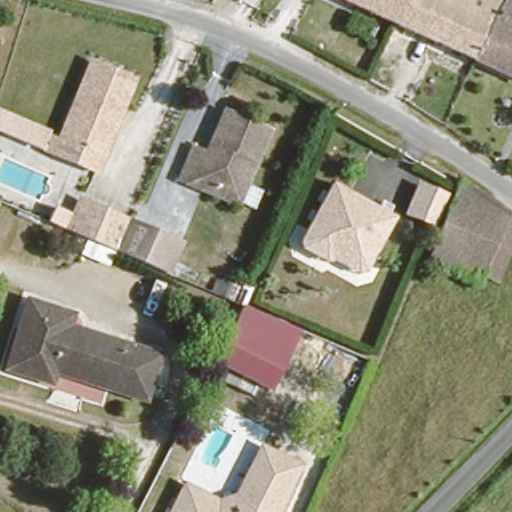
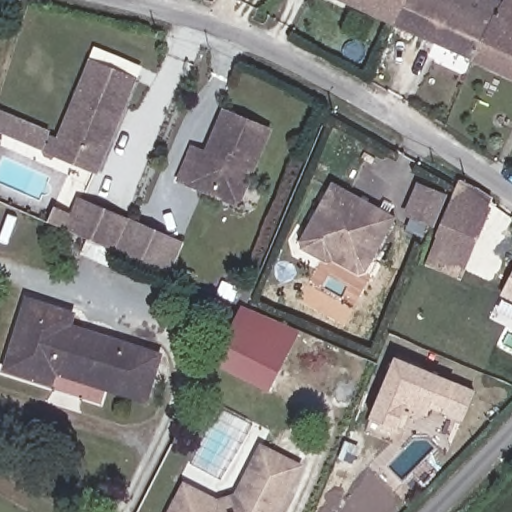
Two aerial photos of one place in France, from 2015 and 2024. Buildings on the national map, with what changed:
unchanged [(353,0),(402,0),(393,19),(353,0)]
unchanged [(402,0),(500,0),(497,6),(489,18),(472,55),(393,19),(402,0)]
unchanged [(489,18),(497,6),(500,0),(512,0),(512,73),(472,55),(489,18)]
unchanged [(54,152),(59,138),(89,62),(133,80),(102,155),(96,169),(54,152)]
unchanged [(190,192),(173,185),(187,151),(202,156),(219,115),(266,135),(251,169),(234,210),(190,192)]
unchanged [(483,271),(477,284),(425,260),(459,177),(478,186),(509,209),(483,271)]
unchanged [(407,210),(418,182),(447,194),(434,222),(407,210)]
unchanged [(360,273),(334,259),(329,263),(305,250),(303,242),(308,233),(332,186),(394,219),(372,262),(366,271),(360,273)]
unchanged [(118,250),(78,233),(69,230),(83,200),(91,203),(129,221),(118,250)]
unchanged [(498,277),(483,271),(509,209),(512,211),(512,243),(498,277)]
unchanged [(174,275),(158,268),(120,252),(118,250),(129,221),(170,239),(187,245),(174,275)]
new [(512,274),(512,299),(502,294),(512,274)]
unchanged [(26,299),(73,314),(68,327),(159,356),(144,403),(54,374),(51,385),(4,370),(26,299)]
unchanged [(216,364),(234,325),(287,351),(268,389),(216,364)]
new [(396,361),(474,394),(463,422),(431,408),(427,417),(406,408),(397,431),(371,420),(396,361)]
unchanged [(219,497),(234,493),(259,443),(305,465),(280,512),(166,512),(182,481),(219,497)]

